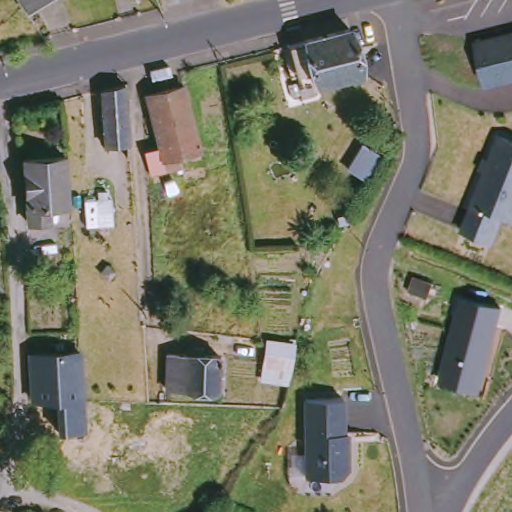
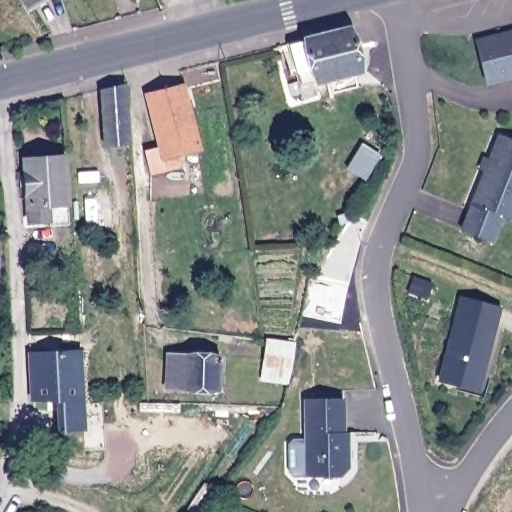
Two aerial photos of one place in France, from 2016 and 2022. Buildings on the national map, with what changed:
unchanged [(35,7),(30,0),(45,0),(35,7)]
unchanged [(311,87),(313,97),(303,100),(295,73),(287,46),(351,30),(362,73),(311,87)]
unchanged [(485,83),(476,41),(512,33),(512,76),(485,83)]
unchanged [(108,148),(105,92),(128,86),(133,145),(108,148)]
unchanged [(148,153),(164,148),(151,97),(188,87),(202,152),(183,158),(185,168),(154,175),(148,153)]
unchanged [(512,140),(512,218),(503,215),(492,241),(462,228),(488,170),(483,168),(487,158),(492,161),(493,159),(503,136),(512,140)]
unchanged [(40,223),(38,209),(36,209),(33,161),(71,157),(74,206),(57,207),(57,222),(40,223)]
unchanged [(462,297),(502,307),(480,394),(438,383),(462,297)]
unchanged [(267,383),(271,344),(298,348),(290,385),(267,383)]
unchanged [(35,399),(33,353),(84,350),(87,402),(35,399)]
unchanged [(218,395),(170,392),(171,358),(219,361),(219,369),(218,384),(218,395)]
unchanged [(345,392),(346,426),(350,426),(350,433),(351,463),(343,471),(309,472),(307,393),(345,392)]

